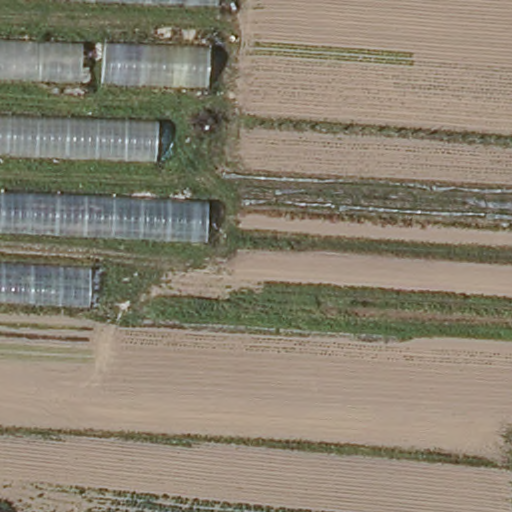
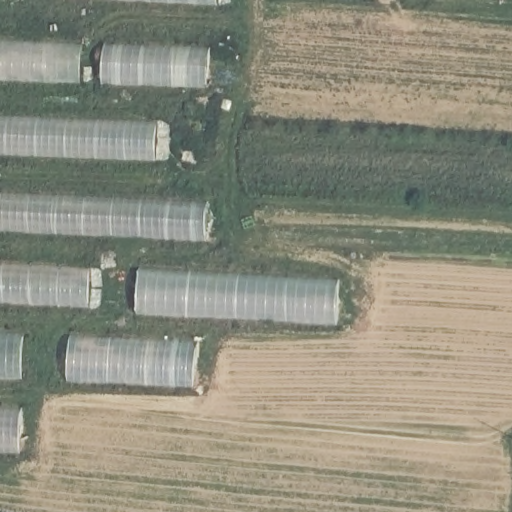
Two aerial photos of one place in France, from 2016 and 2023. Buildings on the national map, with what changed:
unchanged [(157,0),(218,0),(217,2),(157,0)]
unchanged [(91,45),(91,60),(81,60),(82,80),(0,77),(0,43),(91,45)]
unchanged [(102,45),(209,49),(208,87),(102,85),(102,45)]
unchanged [(159,125),(157,160),(0,155),(0,120),(159,125)]
unchanged [(210,204),(207,237),(0,229),(0,195),(210,204)]
new [(0,303),(0,263),(92,267),(91,308),(0,303)]
new [(342,279),(337,329),(137,314),(143,268),(342,279)]
new [(29,337),(27,383),(0,382),(0,336),(29,337)]
new [(197,345),(196,391),(71,384),(72,351),(72,338),(197,345)]
new [(25,410),(24,456),(0,455),(0,409),(25,410)]

